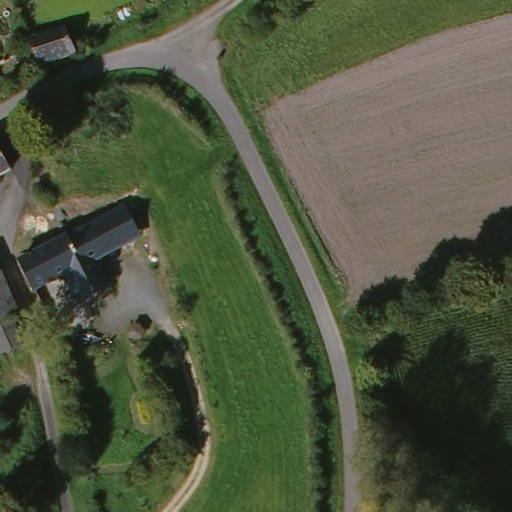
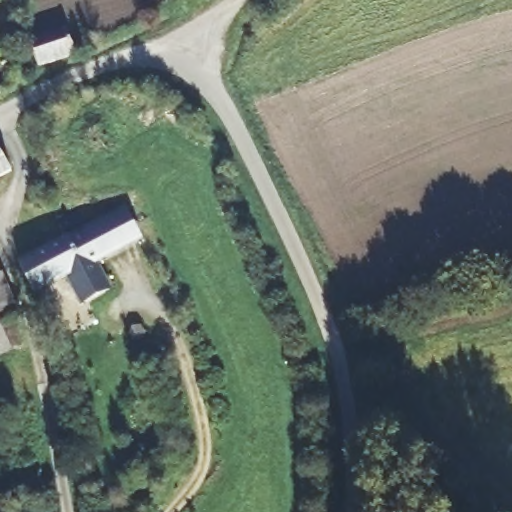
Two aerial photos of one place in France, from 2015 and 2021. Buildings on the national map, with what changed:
unchanged [(37,74),(26,42),(62,32),(72,61),(37,74)]
unchanged [(4,176),(0,179),(0,170),(4,176)]
unchanged [(126,210),(135,237),(99,260),(110,286),(80,300),(67,276),(76,273),(63,242),(126,210)]
unchanged [(63,242),(76,273),(67,276),(23,295),(12,266),(63,242)]
unchanged [(0,355),(0,284),(21,346),(0,355)]

